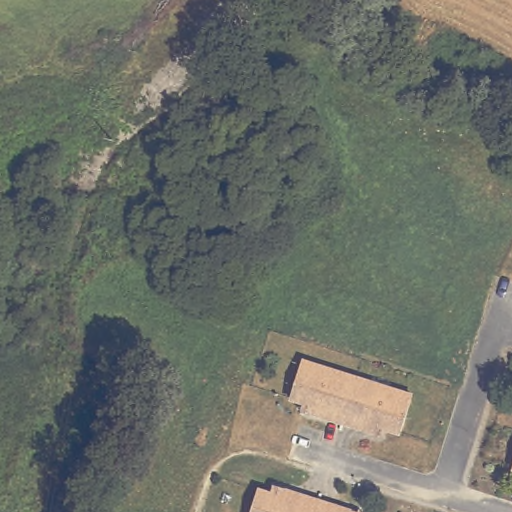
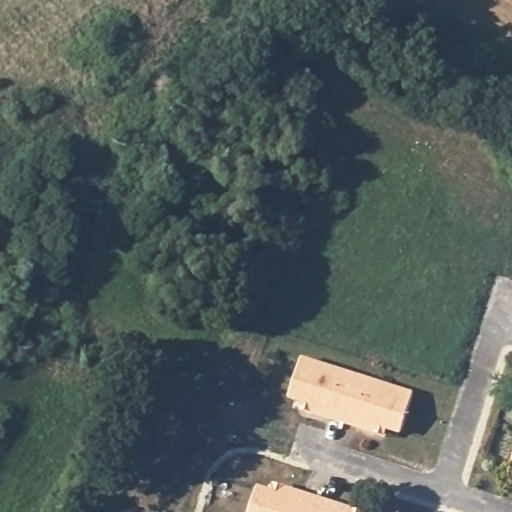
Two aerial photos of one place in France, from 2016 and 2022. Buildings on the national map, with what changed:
unchanged [(299,407),(303,397),(289,393),(302,356),(357,374),(343,417),(312,408),(311,411),(299,407)]
unchanged [(373,430),(374,427),(343,417),(357,374),(412,391),(401,428),(388,424),(384,434),(373,430)]
unchanged [(269,499),(273,489),(284,493),(284,496),(318,507),(316,512),(252,512),(257,495),(269,499)]
unchanged [(316,512),(318,507),(336,512),(316,512)]

